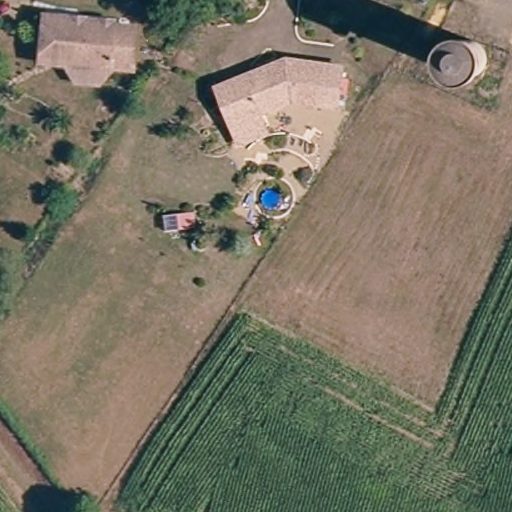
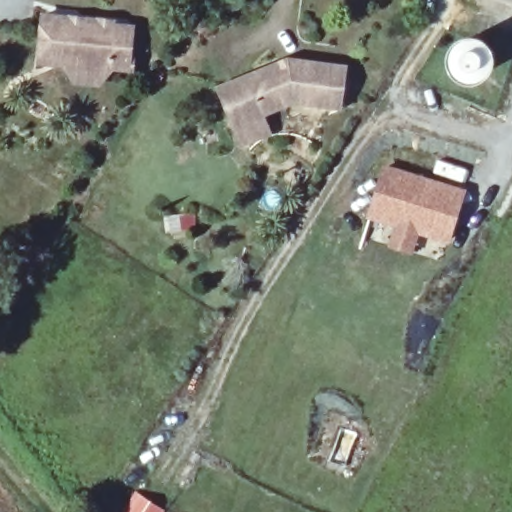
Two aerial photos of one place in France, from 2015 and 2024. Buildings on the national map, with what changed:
unchanged [(44,51),(48,13),(115,21),(119,26),(138,28),(133,64),(115,61),(110,65),(80,61),(43,57),(44,51)]
new [(80,61),(110,65),(115,61),(133,64),(132,73),(114,71),(101,88),(73,87),(64,68),(42,66),(43,57),(62,59),(80,61)]
unchanged [(221,91),(288,58),(345,62),(342,102),(296,99),(264,115),(272,132),(247,145),(238,127),(221,91)]
new [(414,253),(389,247),(394,227),(369,220),(384,165),(468,189),(451,245),(419,235),(414,253)]
unchanged [(217,208),(220,224),(191,230),(188,214),(217,208)]
new [(123,512),(135,492),(166,512),(123,512)]

